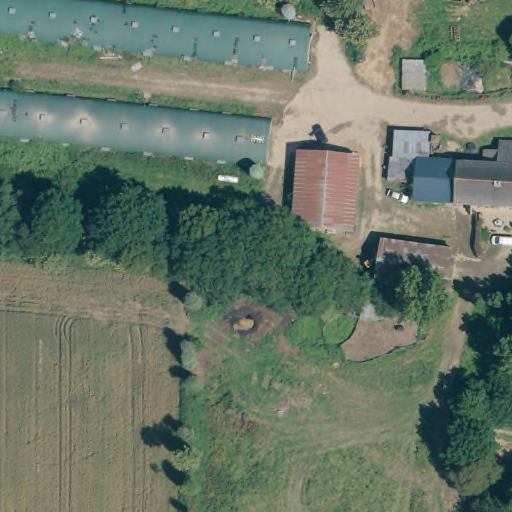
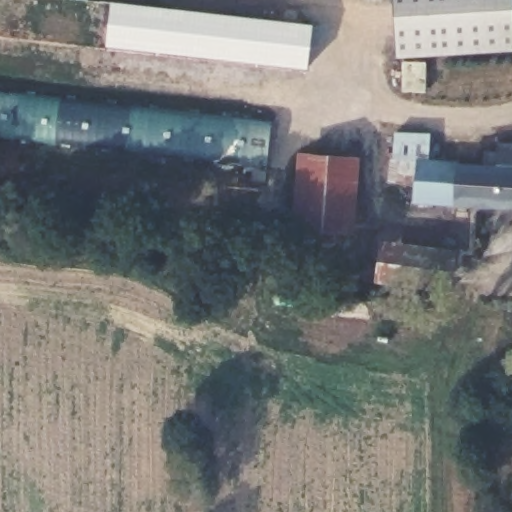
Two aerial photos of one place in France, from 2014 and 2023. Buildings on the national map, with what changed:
unchanged [(310,28),(304,73),(0,33),(0,0),(102,0),(310,28)]
new [(512,52),(397,59),(393,0),(512,0),(512,52)]
unchanged [(269,169),(0,134),(0,85),(276,122),(269,169)]
unchanged [(491,157),(503,157),(504,146),(512,147),(512,210),(460,207),(462,166),(468,166),(490,168),(491,157)]
unchanged [(311,156),(350,161),(342,235),(302,231),(311,156)]
unchanged [(417,186),(382,183),(383,159),(388,159),(418,162),(462,166),(460,207),(416,204),(417,186)]
unchanged [(378,280),(379,273),(384,240),(457,250),(453,278),(452,291),(378,280)]
unchanged [(379,289),(378,309),(361,309),(362,285),(379,289)]

